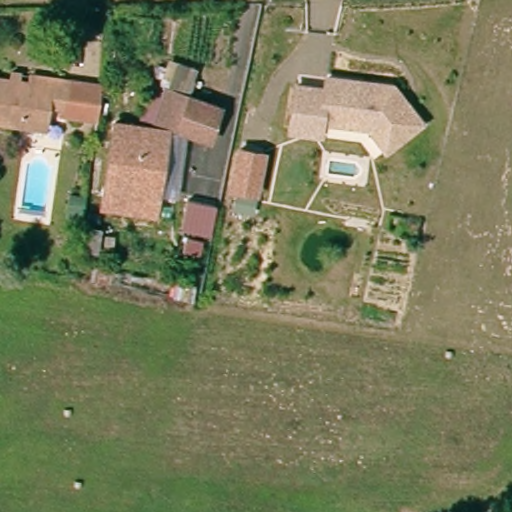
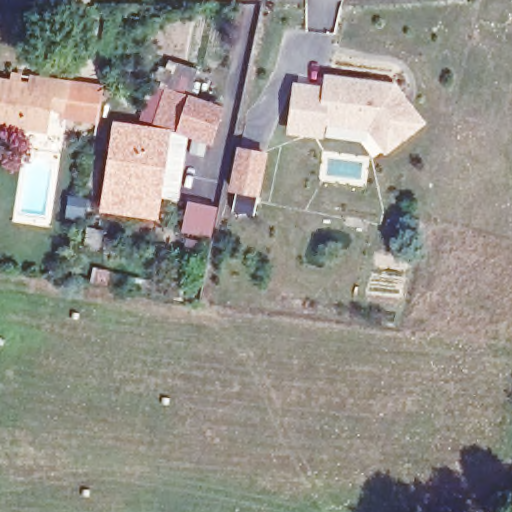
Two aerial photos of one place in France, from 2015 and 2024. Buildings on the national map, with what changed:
unchanged [(386,145),(370,123),(323,115),(321,129),(290,124),(297,80),(327,85),(330,71),(395,83),(400,90),(411,106),(421,120),(386,145)]
unchanged [(36,136),(0,130),(0,85),(1,78),(11,79),(11,80),(33,83),(60,87),(96,92),(91,119),(56,114),(40,111),(36,136)]
unchanged [(152,120),(160,86),(214,98),(207,130),(152,120)]
unchanged [(92,212),(95,197),(96,187),(106,127),(159,136),(149,195),(147,205),(145,220),(92,212)]
unchanged [(255,195),(230,190),(238,150),(262,155),(255,195)]
unchanged [(165,252),(171,228),(202,235),(196,259),(165,252)]

